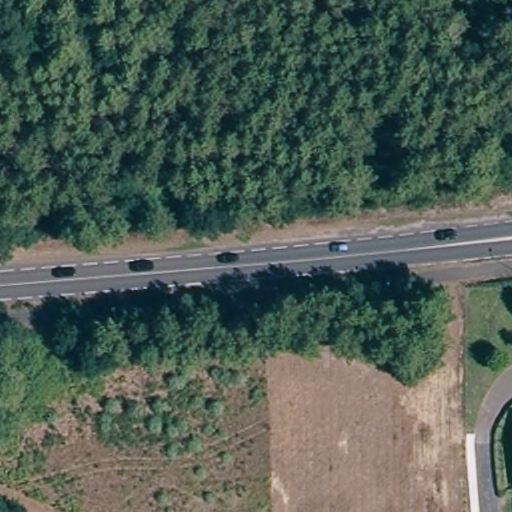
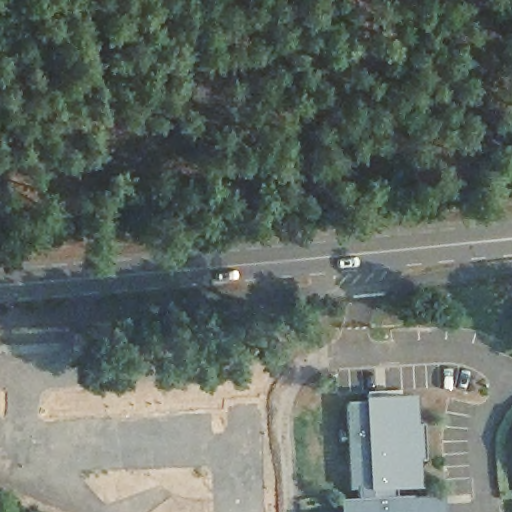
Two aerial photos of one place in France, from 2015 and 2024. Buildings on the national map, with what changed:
new [(417,396),(419,424),(425,424),(426,460),(420,461),(422,488),(398,490),(398,497),(445,496),(445,512),(341,512),(341,499),(360,499),(360,490),(349,490),(345,422),(349,421),(348,405),(417,396)]

